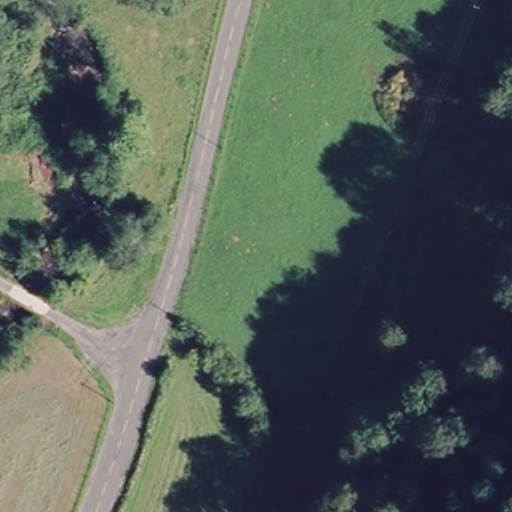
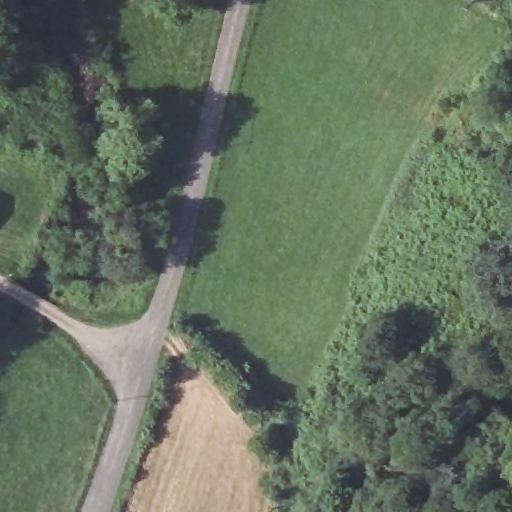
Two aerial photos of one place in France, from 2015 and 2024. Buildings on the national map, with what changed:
[]

